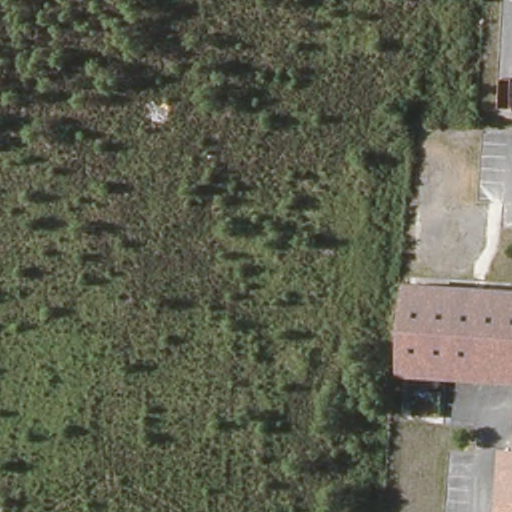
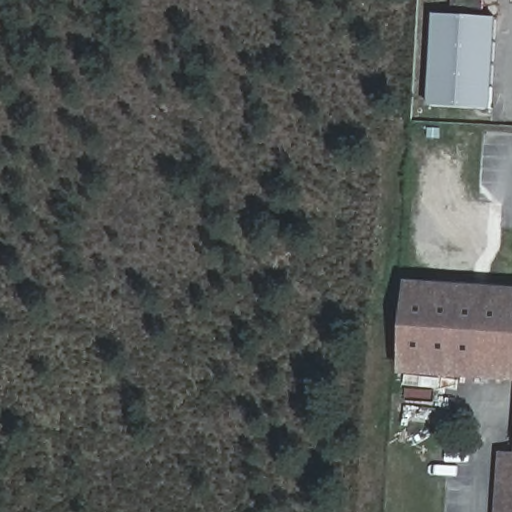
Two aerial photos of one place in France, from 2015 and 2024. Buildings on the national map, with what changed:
new [(492,19),(487,110),(425,106),(431,15),(492,19)]
unchanged [(412,280),(512,286),(512,374),(407,367),(412,280)]
unchanged [(512,453),(512,512),(497,512),(501,453),(512,453)]

